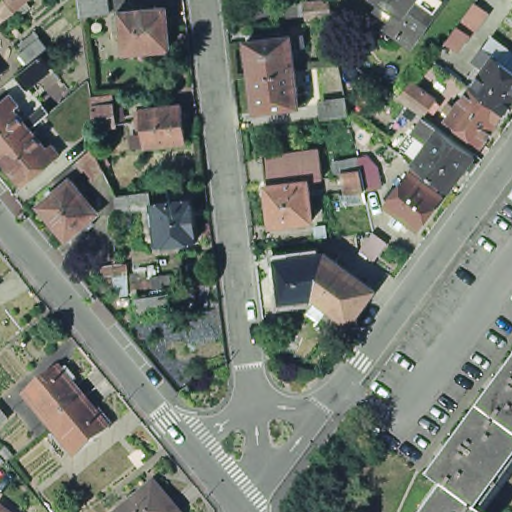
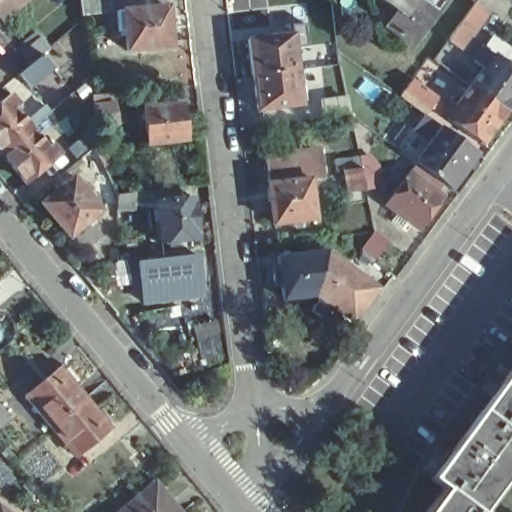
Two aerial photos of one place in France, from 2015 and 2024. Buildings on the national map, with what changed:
unchanged [(0,0),(30,0),(18,9),(5,20),(0,13),(0,0)]
unchanged [(92,19),(90,1),(97,0),(127,0),(128,15),(92,19)]
unchanged [(330,0),(332,13),(308,16),(306,2),(330,0)]
unchanged [(418,0),(405,16),(383,0),(418,0)]
unchanged [(449,0),(451,1),(417,47),(403,37),(410,20),(405,16),(418,0),(449,0)]
unchanged [(449,39),(460,23),(463,19),(476,1),(477,0),(490,10),(476,28),(473,33),(470,30),(459,46),(449,39)]
unchanged [(139,54),(137,34),(130,35),(128,15),(177,10),(182,49),(139,54)]
unchanged [(30,85),(20,72),(31,63),(21,51),(40,35),(50,47),(44,52),(55,65),(30,85)]
unchanged [(300,38),(310,37),(312,52),(301,54),(303,74),(258,79),(255,43),(300,38)]
unchanged [(485,67),(487,68),(496,56),(512,68),(512,104),(506,111),(471,86),(485,67)]
unchanged [(262,113),(258,79),(303,74),(306,97),(314,96),(316,108),(262,113)]
unchanged [(438,97),(425,114),(405,99),(400,96),(414,78),(418,81),(438,97)]
unchanged [(0,85),(0,82),(1,84),(0,85)]
unchanged [(482,144),(450,119),(457,108),(455,107),(471,86),(506,111),(482,144)]
unchanged [(0,108),(12,97),(21,108),(17,112),(33,132),(2,158),(0,156),(0,108)]
unchanged [(324,116),(322,102),(348,99),(351,112),(324,116)]
unchanged [(116,102),(118,122),(96,125),(94,106),(116,102)]
unchanged [(189,139),(149,144),(148,138),(145,108),(185,103),(188,133),(189,139)]
unchanged [(470,170),(466,166),(450,187),(417,162),(433,140),(429,136),(417,127),(426,116),(438,125),(475,153),(470,160),(475,163),(470,170)]
unchanged [(396,131),(388,141),(385,137),(391,128),(396,131)]
unchanged [(26,187),(2,158),(33,132),(50,150),(54,147),(63,158),(26,187)]
unchanged [(106,167),(96,173),(86,154),(85,152),(95,144),(96,146),(106,167)]
unchanged [(271,203),(270,203),(268,192),(271,192),(270,187),(270,182),(267,158),(324,151),(326,176),(327,180),(317,181),(320,199),(312,200),(315,222),(275,227),(271,203)]
unchanged [(348,178),(345,179),(343,172),(346,171),(362,167),(366,184),(367,187),(351,191),(348,178)]
unchanged [(420,228),(409,220),(404,227),(388,215),(395,209),(387,203),(411,171),(418,176),(422,170),(439,182),(435,188),(445,196),(420,228)]
unchanged [(71,239),(44,207),(75,181),(82,190),(86,186),(92,193),(87,197),(101,214),(71,239)]
unchanged [(205,242),(163,247),(159,209),(125,213),(125,201),(123,197),(128,196),(157,194),(157,198),(158,206),(200,201),(205,242)]
unchanged [(328,299),(330,297),(328,297),(323,256),(331,255),(382,294),(357,327),(330,305),(326,303),(328,299)]
new [(142,302),(137,263),(198,256),(203,295),(142,302)]
unchanged [(323,256),(328,297),(323,298),(321,298),(289,301),(285,261),(323,256)]
demolished [(156,274),(174,272),(175,283),(157,286),(156,274)]
demolished [(167,293),(169,307),(141,310),(140,296),(167,293)]
unchanged [(29,393),(62,367),(87,397),(54,424),(29,393)]
unchanged [(435,482),(512,377),(512,476),(486,512),(476,512),(450,492),(435,482)]
unchanged [(112,428),(79,455),(54,424),(87,397),(112,428)]
unchanged [(0,426),(0,406),(10,417),(0,426)]
unchanged [(155,484),(179,512),(124,512),(155,484)]
unchanged [(450,492),(476,512),(435,512),(450,492)]
unchanged [(0,511),(1,509),(6,512),(0,512),(0,511)]

